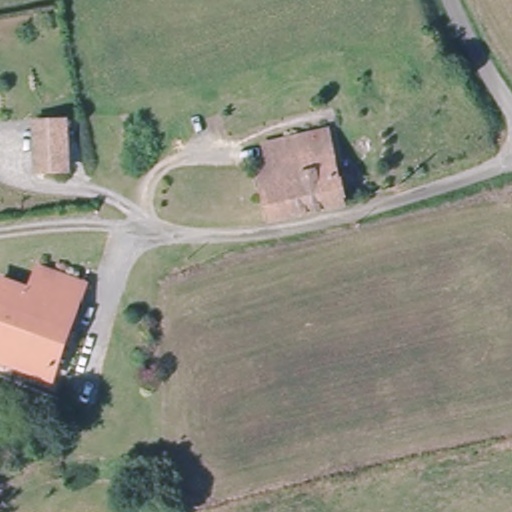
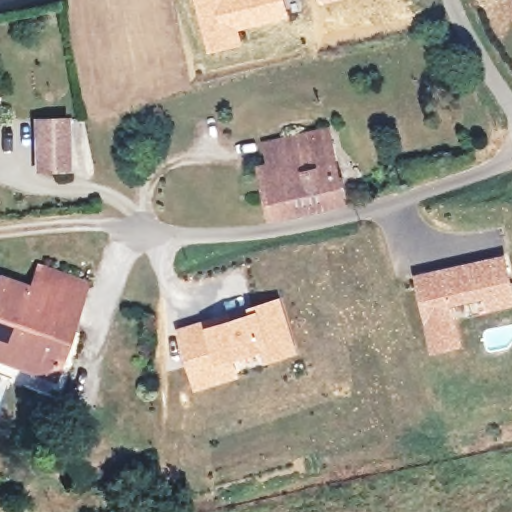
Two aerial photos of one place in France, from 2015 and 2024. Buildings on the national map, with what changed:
new [(237,30),(241,43),(208,51),(194,0),(284,0),(288,18),(237,30)]
new [(319,0),(334,0),(319,4),(319,0)]
unchanged [(38,168),(36,115),(67,114),(69,166),(38,168)]
unchanged [(263,160),(259,138),(273,134),(332,121),(349,199),(268,218),(256,163),(263,160)]
new [(512,306),(488,312),(485,299),(451,307),(457,319),(463,347),(432,353),(413,274),(505,253),(512,281),(512,306)]
unchanged [(32,283),(38,264),(88,279),(56,379),(0,361),(0,274),(32,283)]
new [(204,319),(205,323),(247,310),(246,306),(280,296),(297,353),(266,363),(264,356),(235,364),(239,377),(194,391),(174,329),(204,319)]

